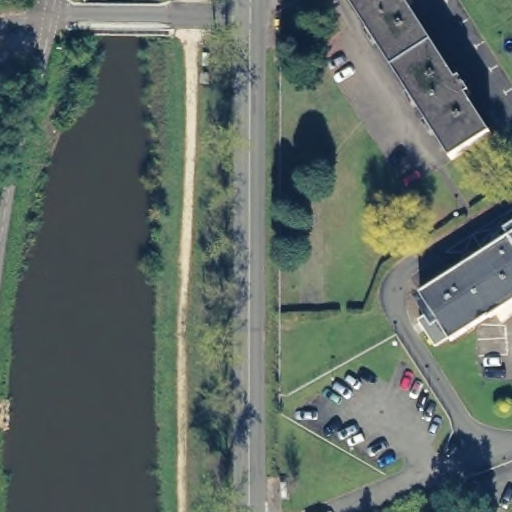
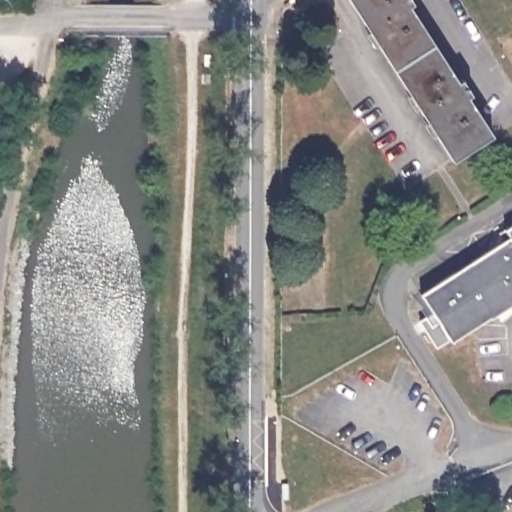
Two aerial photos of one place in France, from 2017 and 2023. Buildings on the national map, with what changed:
unchanged [(452,159),(348,0),(409,0),(492,133),(452,159)]
unchanged [(421,292),(509,234),(505,227),(512,223),(512,300),(451,339),(421,292)]

